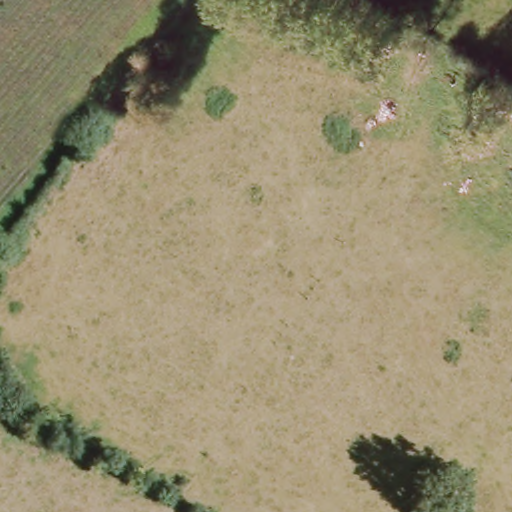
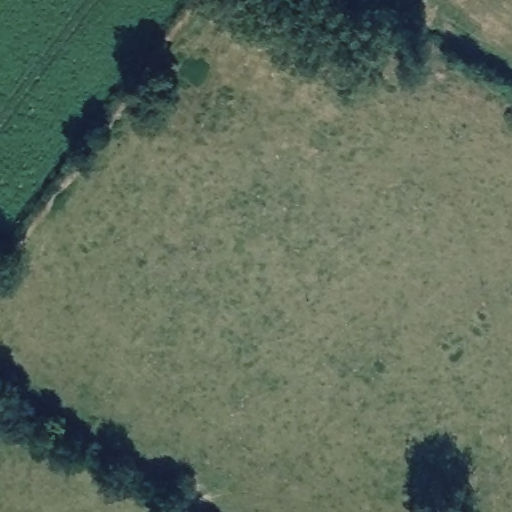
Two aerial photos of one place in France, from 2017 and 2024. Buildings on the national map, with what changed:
[]

